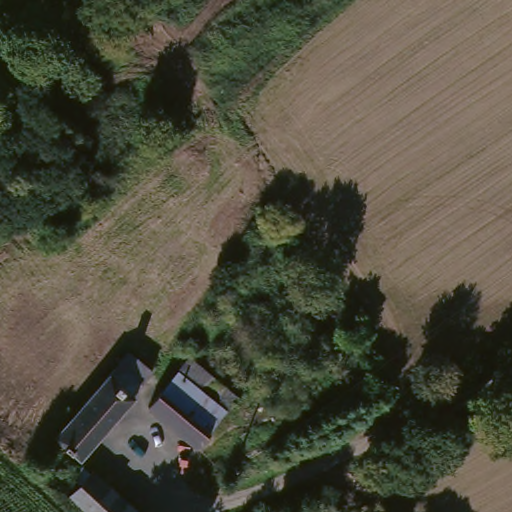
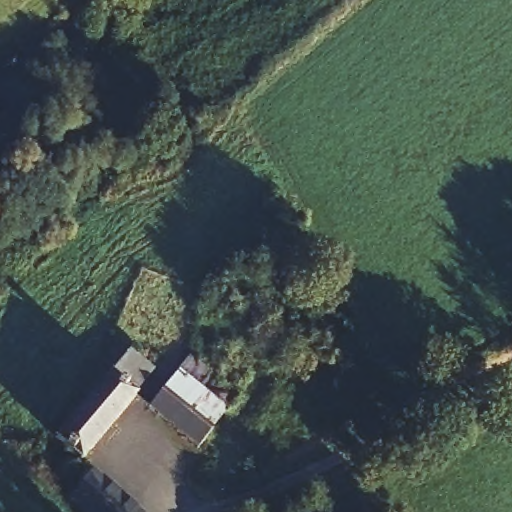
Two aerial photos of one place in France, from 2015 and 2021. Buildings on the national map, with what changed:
unchanged [(134,350),(155,370),(136,391),(140,395),(113,424),(89,402),(106,381),(127,357),(134,350)]
unchanged [(194,354),(242,399),(232,410),(215,430),(166,385),(185,364),(194,354)]
unchanged [(215,430),(199,447),(150,403),(166,385),(215,430)]
unchanged [(86,455),(64,433),(73,422),(89,402),(113,424),(86,455)]
unchanged [(86,512),(78,505),(83,485),(76,478),(87,465),(95,472),(99,468),(147,512),(86,512)]

